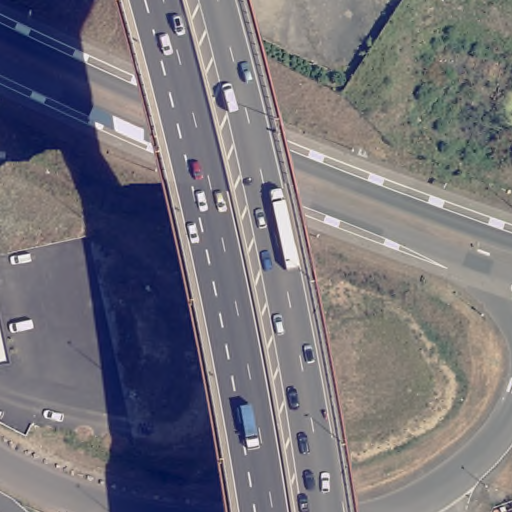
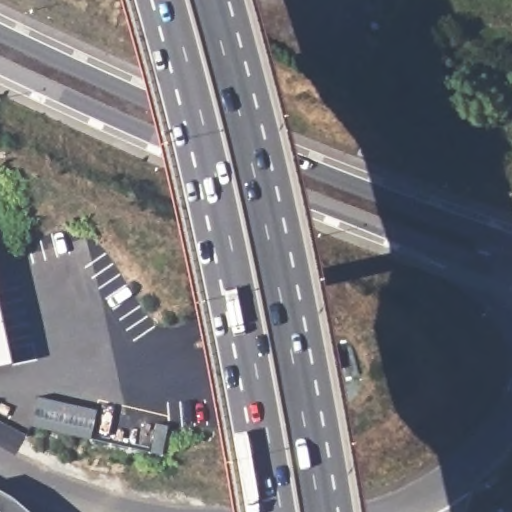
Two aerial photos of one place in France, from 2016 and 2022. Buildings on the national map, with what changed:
unchanged [(0,363),(0,315),(10,361),(0,363)]
unchanged [(28,512),(0,512),(0,491),(14,499),(28,512)]

